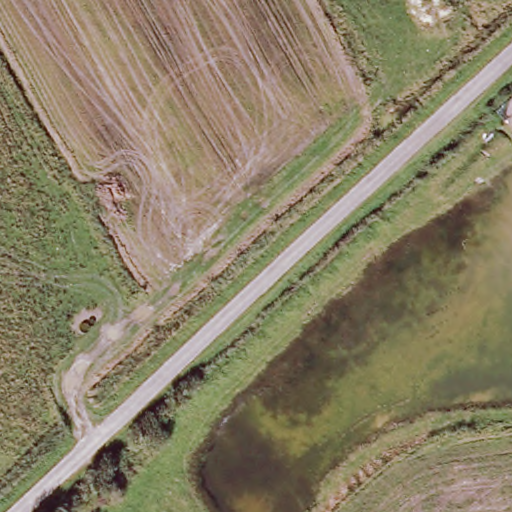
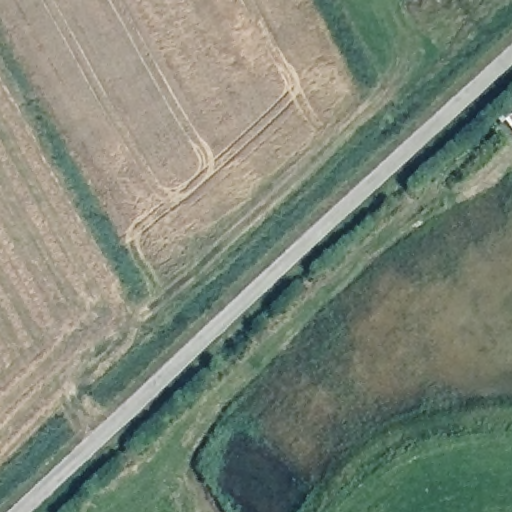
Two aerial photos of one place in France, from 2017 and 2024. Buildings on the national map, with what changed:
unchanged [(512,130),(497,110),(512,97),(512,130)]

